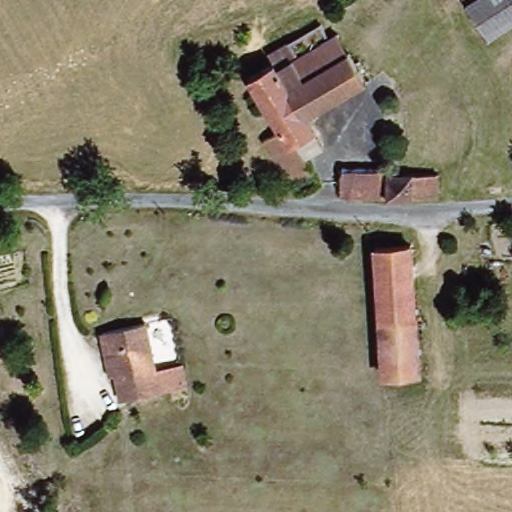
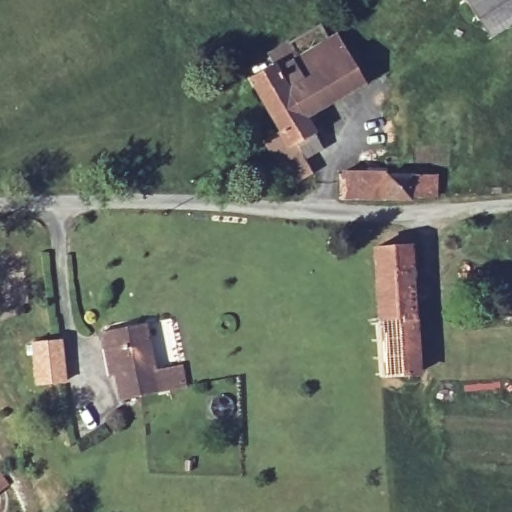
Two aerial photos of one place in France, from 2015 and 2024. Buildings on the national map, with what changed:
unchanged [(480,32),(462,0),(512,0),(512,14),(480,32)]
unchanged [(326,37),(337,30),(363,81),(304,114),(314,132),(296,142),(321,184),(313,192),(302,192),(302,186),(290,185),(288,191),(260,139),(277,130),(247,76),(270,62),(264,52),(317,21),(326,37)]
unchanged [(350,194),(351,172),(420,175),(420,196),(350,194)]
unchanged [(417,323),(420,372),(377,375),(367,250),(412,247),(417,323)]
unchanged [(115,396),(112,347),(99,347),(97,329),(142,325),(145,371),(172,370),(174,390),(147,392),(115,396)]
new [(32,342),(62,339),(65,383),(36,386),(32,342)]

